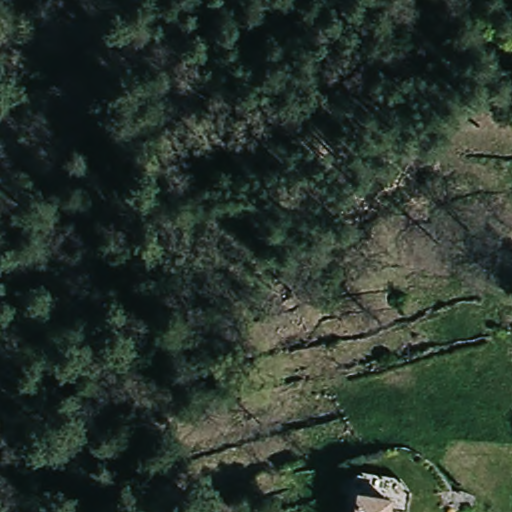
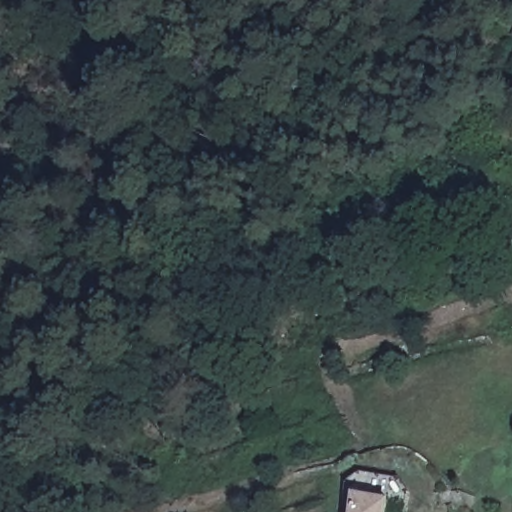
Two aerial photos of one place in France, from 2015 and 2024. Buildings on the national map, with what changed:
unchanged [(395,503),(394,512),(356,512),(359,497),(395,503)]

